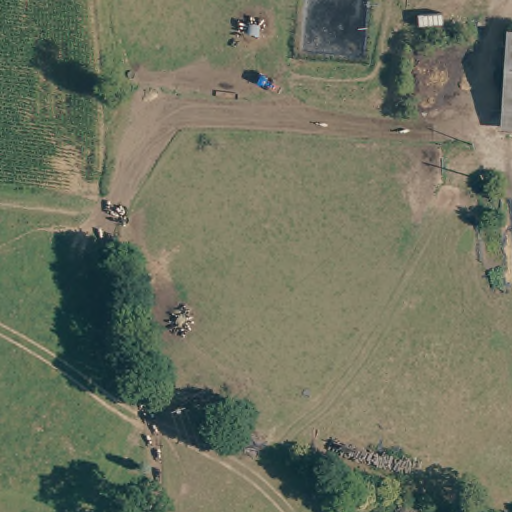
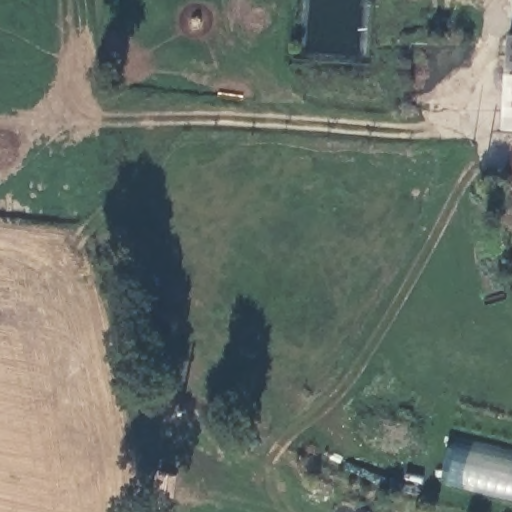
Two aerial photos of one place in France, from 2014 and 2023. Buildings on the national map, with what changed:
unchanged [(512,42),(512,118),(499,118),(500,42),(512,42)]
new [(446,483),(455,444),(512,456),(512,496),(446,483)]

